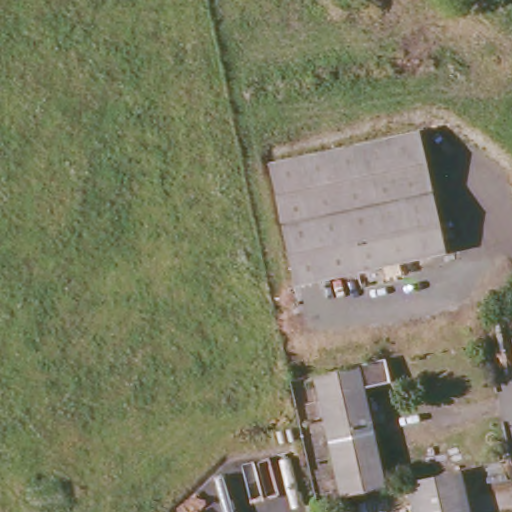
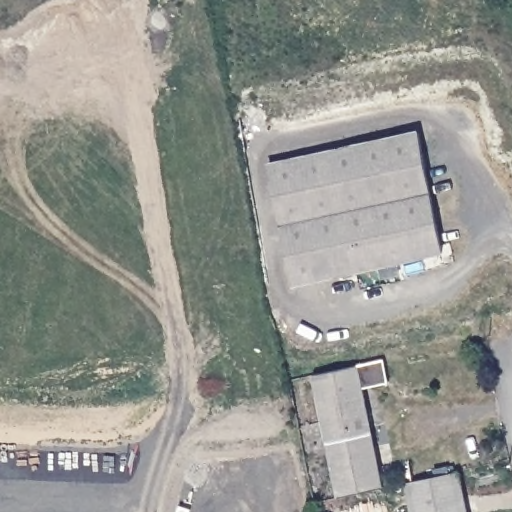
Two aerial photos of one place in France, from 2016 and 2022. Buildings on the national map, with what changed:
unchanged [(440,254),(292,285),(269,168),(416,137),(440,254)]
unchanged [(388,361),(393,385),(367,392),(388,490),(342,499),(317,376),(388,361)]
unchanged [(467,512),(413,512),(408,485),(459,474),(467,512)]

